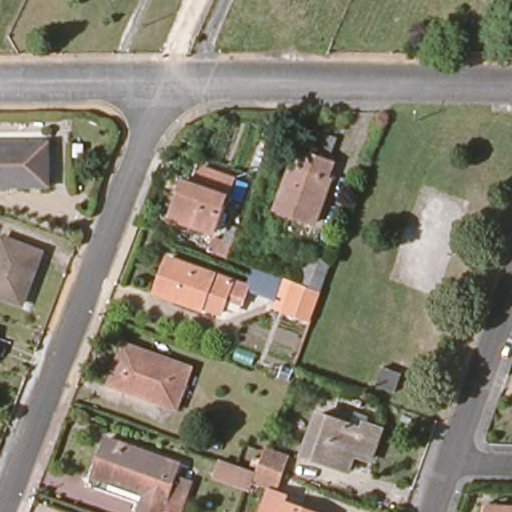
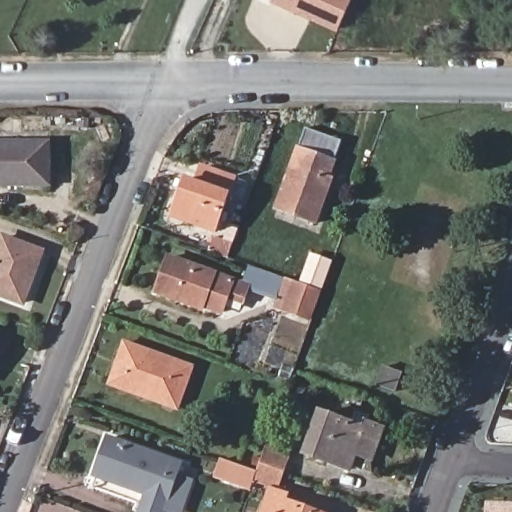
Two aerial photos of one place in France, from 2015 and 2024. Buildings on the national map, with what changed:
new [(271,2),(272,0),(352,0),(337,32),(271,2)]
unchanged [(48,187),(0,188),(0,145),(48,145),(48,187)]
unchanged [(333,176),(336,177),(320,220),(280,206),(303,149),(339,161),(333,176)]
unchanged [(231,182),(212,232),(172,218),(178,198),(183,184),(194,187),(199,171),(231,182)]
unchanged [(25,303),(0,294),(0,253),(5,240),(44,254),(25,303)]
unchanged [(317,254),(336,261),(326,291),(315,320),(290,310),(301,281),(305,282),(317,254)]
unchanged [(237,279),(226,309),(181,293),(179,297),(159,290),(174,255),(237,279)]
unchanged [(195,364),(180,404),(115,382),(130,342),(195,364)]
unchanged [(358,432),(361,426),(377,432),(366,459),(350,453),(344,471),(301,455),(315,416),(358,432)]
unchanged [(174,472),(189,477),(175,510),(161,506),(159,512),(144,512),(137,509),(144,492),(94,473),(108,435),(177,460),(174,472)]
unchanged [(265,451),(288,460),(282,475),(276,491),(254,483),(250,493),(220,482),(226,464),(256,476),(259,467),(265,451)]
unchanged [(287,500),(285,507),(299,512),(265,512),(271,495),(287,500)]
unchanged [(487,512),(487,501),(512,502),(512,512),(487,512)]

